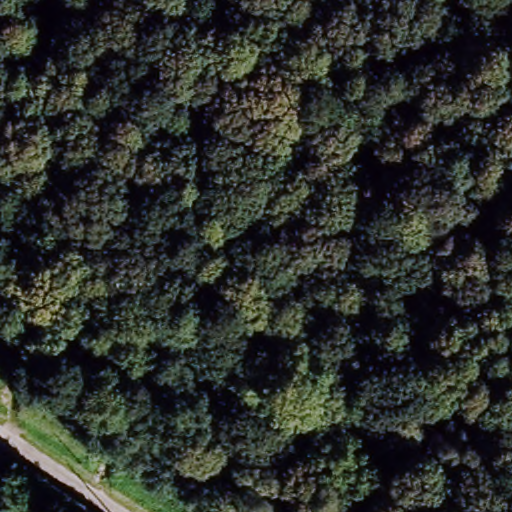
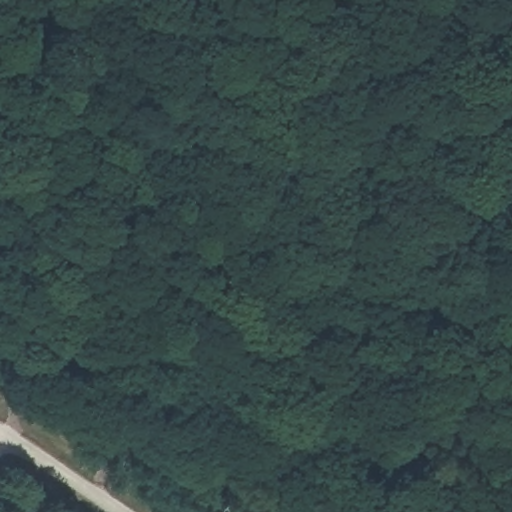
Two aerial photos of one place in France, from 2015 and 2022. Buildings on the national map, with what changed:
[]

